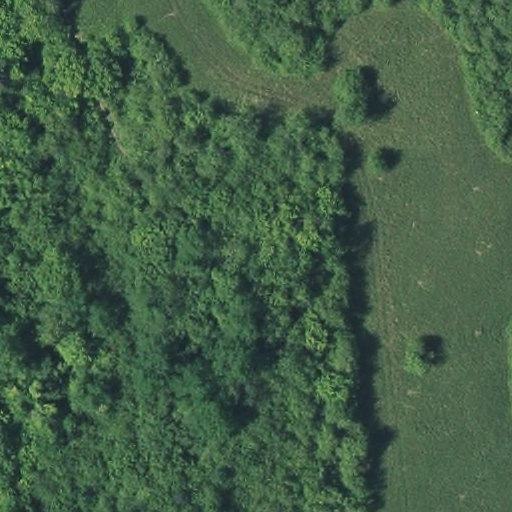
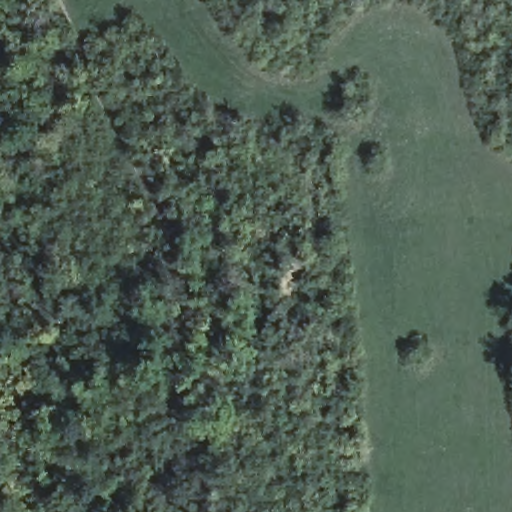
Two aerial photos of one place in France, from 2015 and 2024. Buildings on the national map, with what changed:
[]

